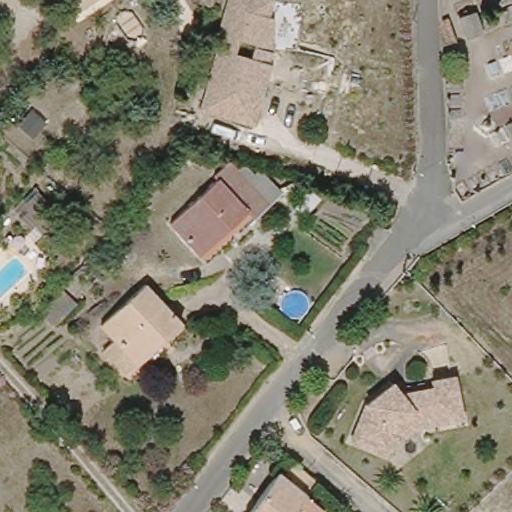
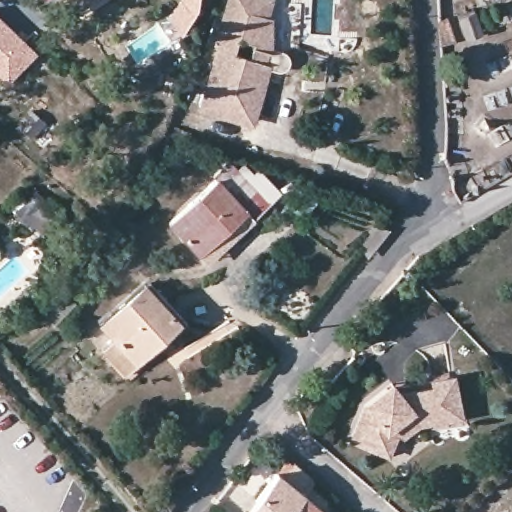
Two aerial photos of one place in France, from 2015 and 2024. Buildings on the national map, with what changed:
unchanged [(52,0),(81,0),(75,3),(58,12),(52,0)]
unchanged [(212,56),(216,34),(219,35),(226,0),(241,0),(264,5),(261,21),(267,22),(266,57),(264,56),(261,68),(264,68),(252,127),(204,114),(218,57),(212,56)]
new [(36,52),(7,82),(0,76),(0,17),(36,52)]
new [(34,140),(16,125),(32,108),(49,122),(34,140)]
unchanged [(211,176),(206,169),(220,156),(228,164),(236,158),(249,169),(253,164),(278,187),(264,201),(249,214),(205,260),(198,252),(167,220),(211,176)]
unchanged [(24,187),(35,175),(51,191),(39,203),(24,187)]
unchanged [(105,338),(149,292),(186,331),(169,348),(162,341),(136,369),(105,338)]
unchanged [(390,380),(397,387),(439,375),(437,369),(460,363),(468,393),(471,402),(449,408),(427,414),(410,428),(404,426),(397,447),(358,435),(370,397),(390,380)]
unchanged [(295,455),(317,472),(307,485),(322,498),(313,512),(246,512),(240,507),(275,462),(283,468),(295,455)]

